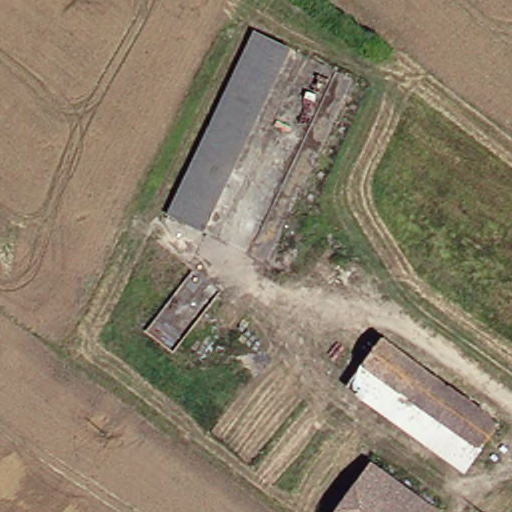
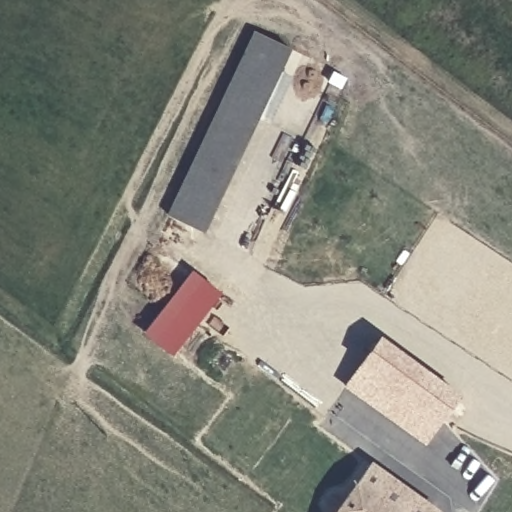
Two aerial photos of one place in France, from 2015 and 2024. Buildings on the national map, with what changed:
unchanged [(207,227),(168,209),(250,32),(289,50),(207,227)]
new [(195,270),(224,292),(173,355),(144,332),(195,270)]
unchanged [(477,448),(358,362),(376,337),(496,420),(477,448)]
unchanged [(461,470),(342,385),(358,362),(477,448),(461,470)]
unchanged [(437,510),(435,512),(326,512),(325,510),(330,504),(326,501),(339,485),(349,492),(371,463),(437,510)]

